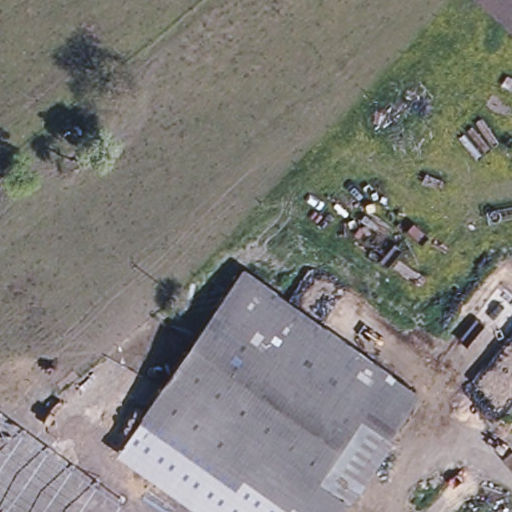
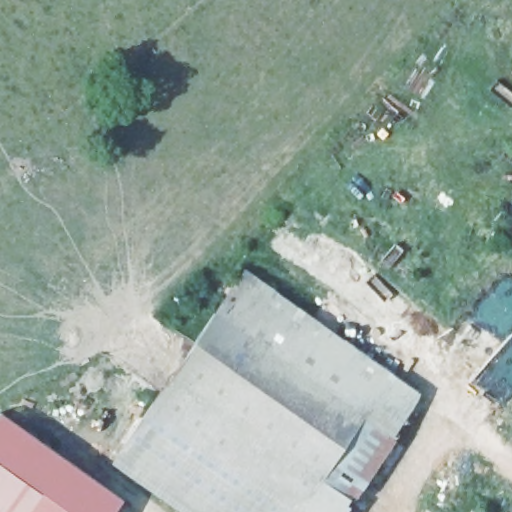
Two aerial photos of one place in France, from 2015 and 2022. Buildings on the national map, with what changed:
unchanged [(416,396),(336,512),(214,512),(124,449),(244,275),(416,396)]
new [(121,499),(112,512),(0,512),(0,414),(121,499)]

